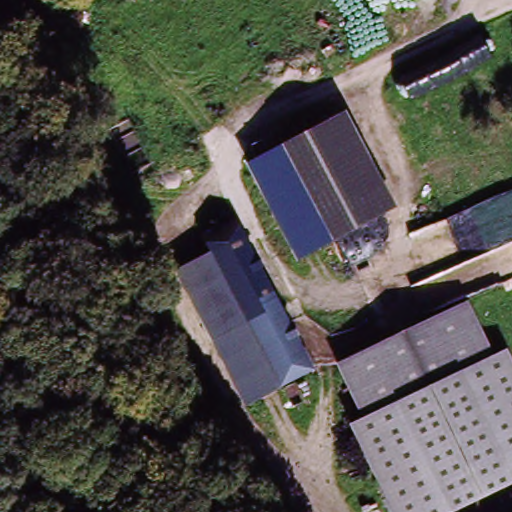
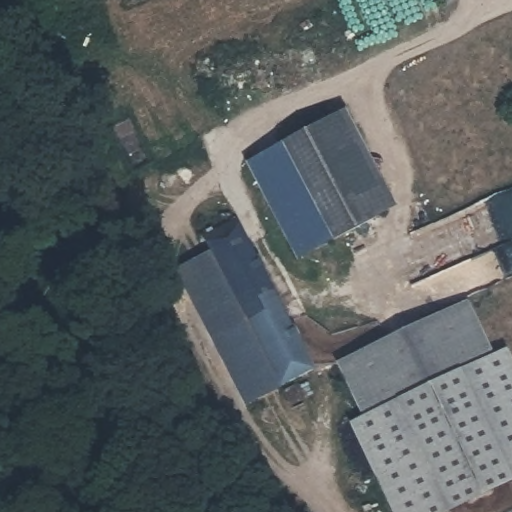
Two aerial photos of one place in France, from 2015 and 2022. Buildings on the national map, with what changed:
unchanged [(251,164),(345,111),(392,207),(298,256),(251,164)]
unchanged [(204,243),(235,227),(307,373),(275,389),(210,255),(204,243)]
unchanged [(210,255),(275,389),(244,404),(178,270),(210,255)]
unchanged [(497,362),(370,423),(344,369),(470,307),(497,362)]
unchanged [(510,356),(512,361),(512,488),(462,512),(398,512),(357,430),(370,423),(497,362),(510,356)]

